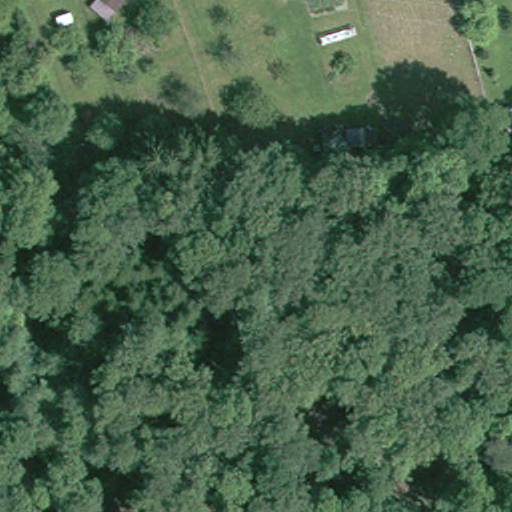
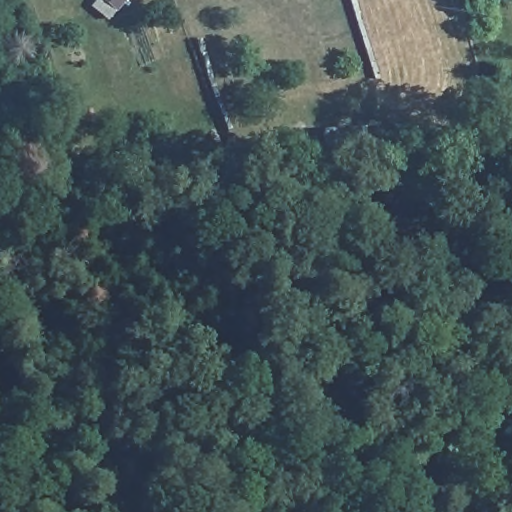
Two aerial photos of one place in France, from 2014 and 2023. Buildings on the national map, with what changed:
unchanged [(110,21),(90,5),(95,0),(128,0),(110,21)]
unchanged [(503,121),(512,119),(512,146),(508,146),(503,121)]
unchanged [(350,142),(348,156),(328,154),(330,139),(350,142)]

